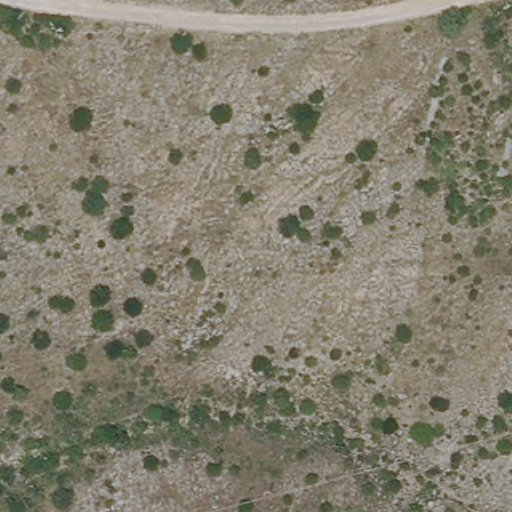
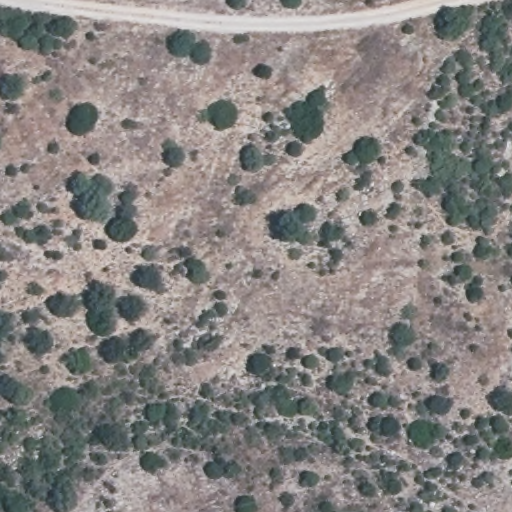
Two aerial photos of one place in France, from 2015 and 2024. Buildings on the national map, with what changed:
[]

